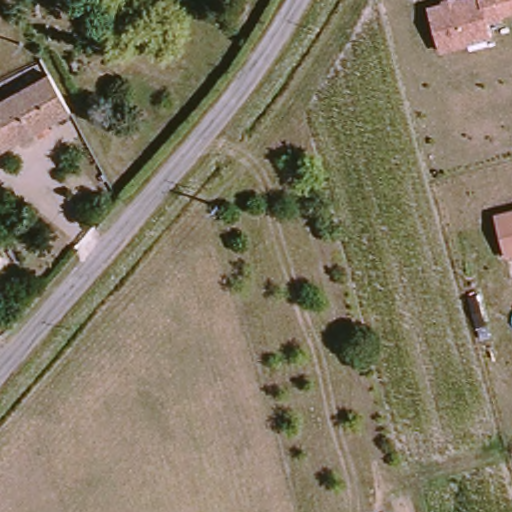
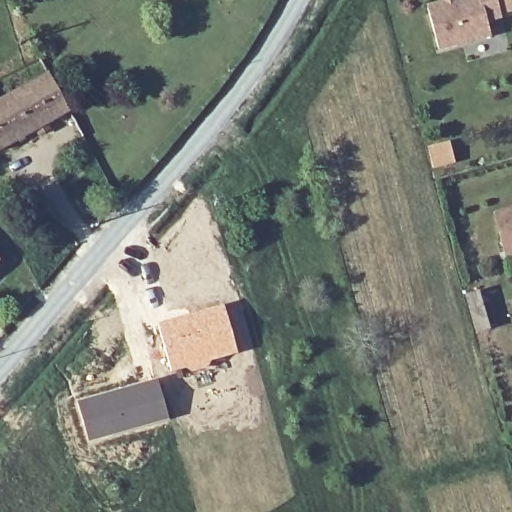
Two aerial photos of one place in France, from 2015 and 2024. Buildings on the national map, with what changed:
unchanged [(512,0),(512,15),(502,18),(503,21),(487,26),(490,38),(437,53),(426,6),(446,0),(512,0)]
unchanged [(0,150),(0,100),(43,75),(65,113),(0,150)]
unchanged [(512,257),(503,259),(492,213),(512,207),(512,257)]
new [(224,305),(238,354),(199,370),(172,374),(157,324),(224,305)]
new [(157,379),(169,420),(89,443),(77,401),(157,379)]

